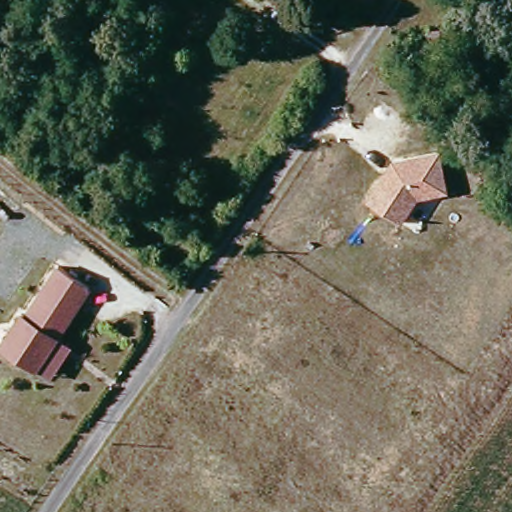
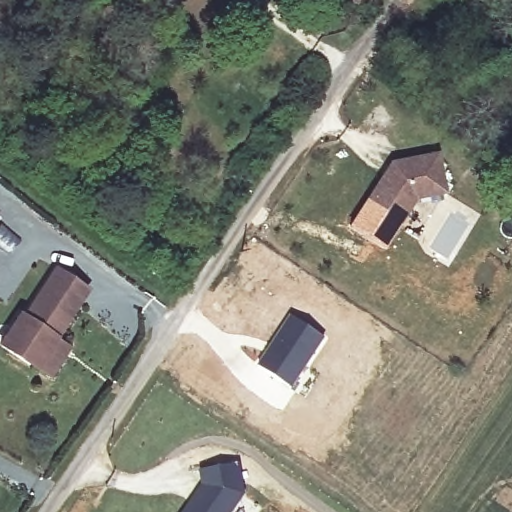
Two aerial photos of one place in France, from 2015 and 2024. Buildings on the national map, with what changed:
unchanged [(366,9),(352,0),(372,0),(366,9)]
unchanged [(416,63),(412,40),(429,35),(429,31),(449,28),(455,67),(436,70),(434,60),(416,63)]
unchanged [(390,160),(439,151),(448,192),(419,197),(401,222),(364,200),(390,160)]
unchanged [(53,381),(39,372),(3,348),(23,318),(28,319),(59,270),(92,291),(60,340),(73,349),(53,381)]
new [(290,314),(324,337),(292,390),(256,365),(290,314)]
new [(203,485),(201,470),(238,463),(243,493),(231,512),(185,512),(191,503),(199,492),(203,485)]

